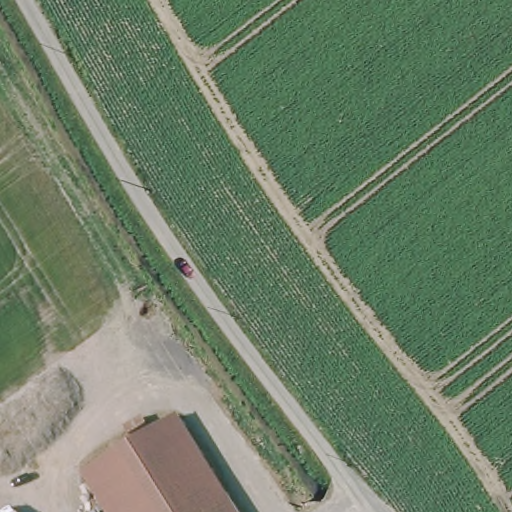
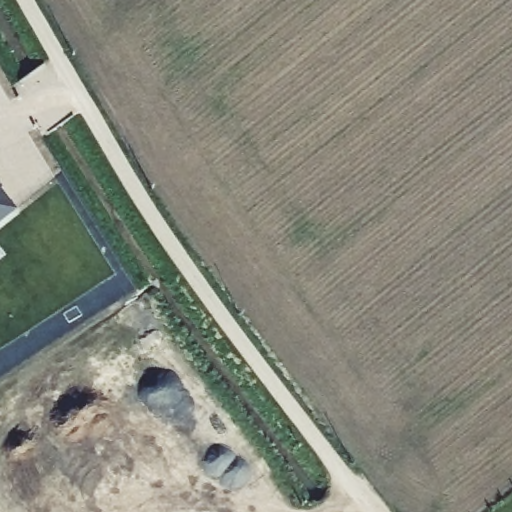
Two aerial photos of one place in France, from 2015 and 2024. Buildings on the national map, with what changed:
new [(11,213),(0,221),(0,199),(11,213)]
demolished [(231,512),(100,512),(82,483),(176,424),(231,512)]

